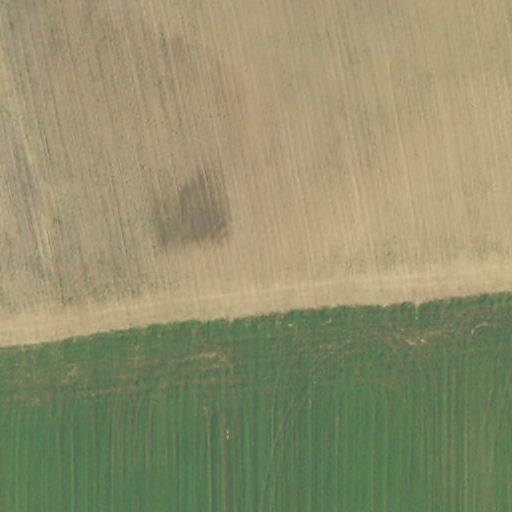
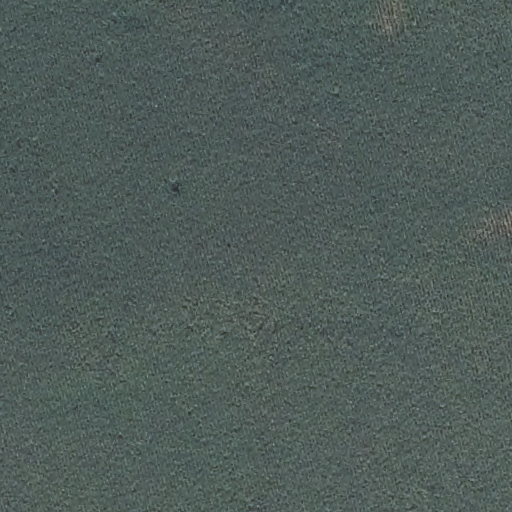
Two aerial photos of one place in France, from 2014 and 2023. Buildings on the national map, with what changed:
[]

